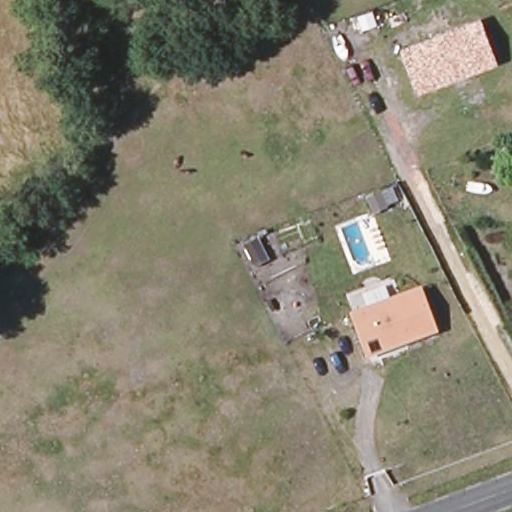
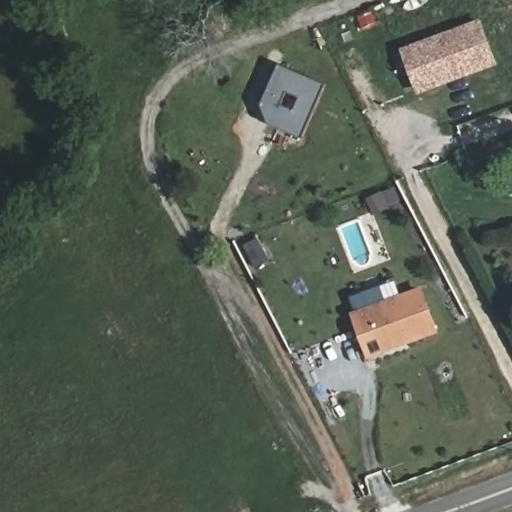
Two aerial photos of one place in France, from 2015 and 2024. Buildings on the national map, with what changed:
unchanged [(418,95),(401,47),(482,20),(499,65),(418,95)]
new [(269,125),(261,105),(279,65),(325,85),(302,138),(269,125)]
unchanged [(367,359),(349,312),(422,287),(439,333),(367,359)]

